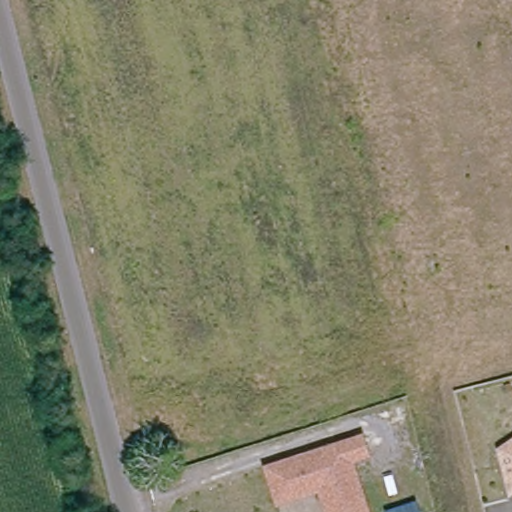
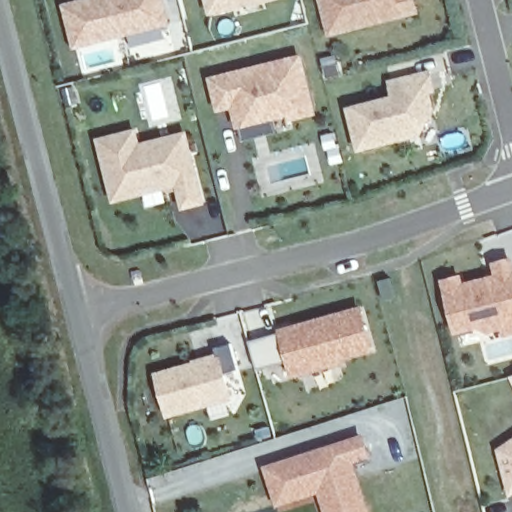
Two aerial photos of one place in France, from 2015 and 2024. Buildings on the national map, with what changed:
new [(171,25),(161,27),(164,39),(131,49),(127,35),(73,49),(62,4),(76,0),(165,0),(171,25)]
new [(211,13),(208,0),(261,0),(211,13)]
new [(320,0),(416,0),(419,13),(328,35),(320,0)]
new [(301,55),(316,116),(288,124),(287,115),(273,120),(276,134),(243,141),(241,130),(235,131),(230,109),(215,112),(208,79),(301,55)]
new [(347,107),(391,96),(387,80),(430,69),(436,90),(431,91),(436,110),(421,135),(357,150),(347,107)]
new [(139,141),(187,130),(204,205),(182,210),(176,188),(112,204),(94,139),(135,127),(139,141)]
new [(505,335),(504,328),(489,333),(480,325),(455,331),(440,278),(461,273),(463,281),(496,274),(494,262),(512,259),(512,334),(505,335)]
new [(375,352),(291,377),(287,361),(258,370),(250,341),(277,334),(275,329),(361,305),(375,352)]
new [(191,363),(190,360),(216,354),(214,348),(230,344),(238,370),(224,373),(231,400),(168,419),(155,372),(191,363)]
unchanged [(504,479),(495,445),(512,434),(512,483),(506,487),(504,479)]
unchanged [(266,469),(323,450),(332,447),(360,438),(366,455),(349,460),(366,512),(326,512),(319,490),(277,503),(266,469)]

